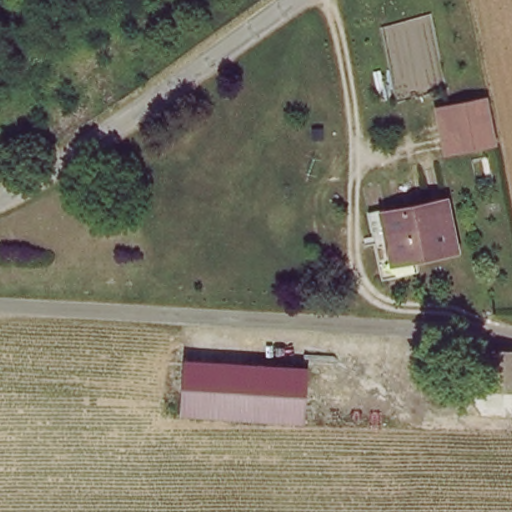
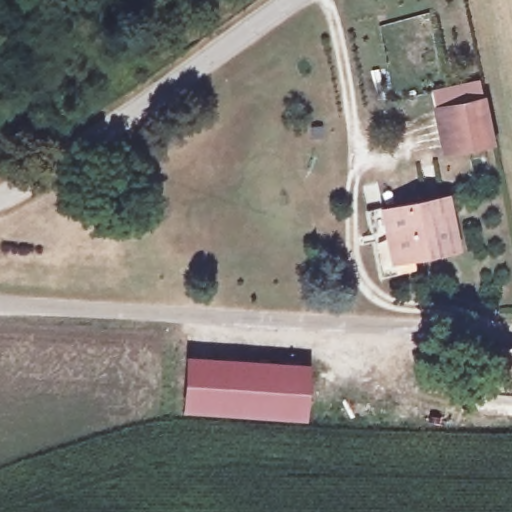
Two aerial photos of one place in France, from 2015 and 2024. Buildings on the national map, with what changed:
unchanged [(486,101),(494,147),(446,158),(437,112),(486,101)]
unchanged [(454,256),(393,265),(383,216),(443,206),(454,256)]
unchanged [(482,355),(512,358),(512,394),(479,391),(482,355)]
unchanged [(306,372),(302,425),(180,419),(184,366),(306,372)]

